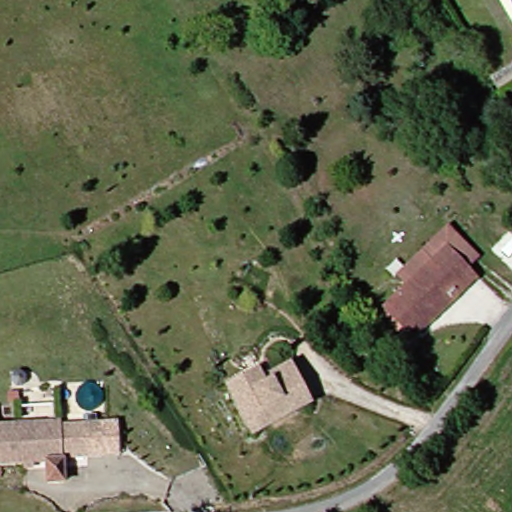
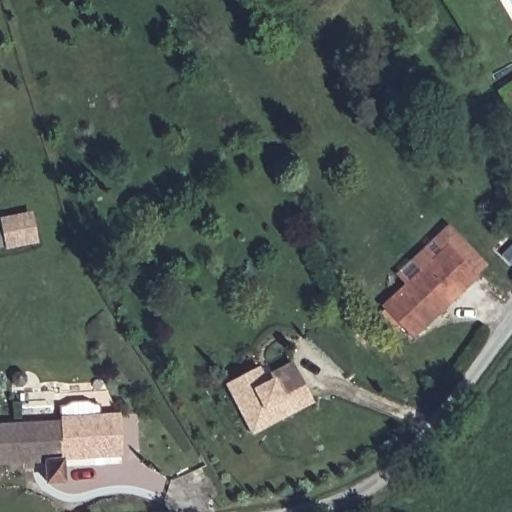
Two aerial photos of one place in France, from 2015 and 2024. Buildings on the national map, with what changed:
new [(9,246),(8,242),(6,230),(5,220),(17,219),(32,216),(35,238),(36,242),(9,246)]
unchanged [(386,308),(410,286),(396,273),(437,237),(450,225),(462,239),(481,260),(470,272),(480,282),(418,342),(386,308)]
unchanged [(248,436),(223,388),(254,372),(262,387),(270,383),(267,378),(287,367),(290,373),(307,405),(248,436)]
unchanged [(54,484),(53,471),(52,466),(1,471),(0,456),(0,431),(65,424),(65,428),(99,424),(100,437),(90,438),(92,459),(68,461),(69,469),(70,482),(54,484)]

